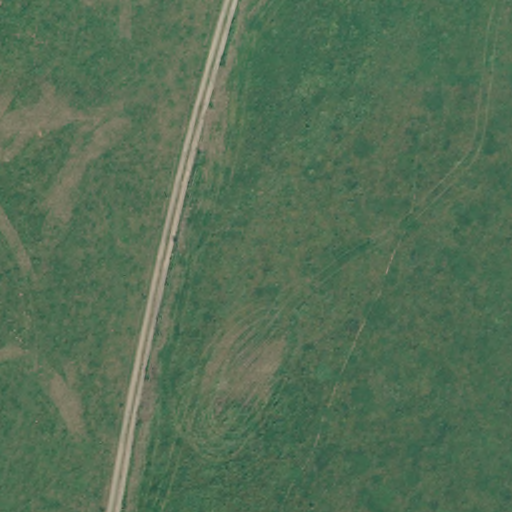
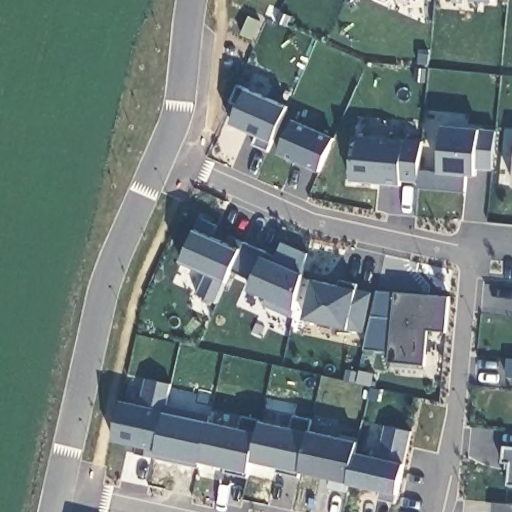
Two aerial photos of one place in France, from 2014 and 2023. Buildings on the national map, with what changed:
new [(417,2),(414,0),(418,0),(417,2)]
new [(492,2),(471,1),(471,0),(492,0),(492,2)]
new [(278,155),(293,120),(335,139),(318,173),(278,155)]
new [(493,171),(477,169),(476,176),(465,177),(465,193),(420,189),(352,184),(354,159),(359,160),(361,137),(421,143),(419,171),(440,173),(443,127),(481,130),(497,132),(493,171)]
new [(196,230),(201,219),(218,226),(214,238),(240,250),(226,283),(217,303),(199,295),(208,274),(181,262),(196,230)]
new [(362,334),(304,320),(314,280),(340,286),(341,281),(358,285),(357,291),(372,293),(362,334)]
new [(446,332),(428,330),(424,365),(388,362),(389,352),(365,351),(377,292),(396,293),(448,298),(446,332)]
new [(508,359),(512,359),(512,376),(507,376),(508,359)]
new [(165,411),(157,452),(155,459),(135,455),(137,448),(112,443),(122,400),(140,405),(146,379),(171,385),(165,411)]
new [(404,463),(398,495),(395,503),(379,499),(380,491),(301,473),(251,463),(249,473),(247,478),(226,473),(226,468),(200,463),(210,423),(239,429),(242,418),(260,422),(292,429),(293,417),(310,422),(309,431),(358,442),(356,452),(378,457),(386,427),(411,433),(404,463)]
new [(510,484),(511,462),(501,462),(504,447),(512,447),(512,484),(510,484)]

